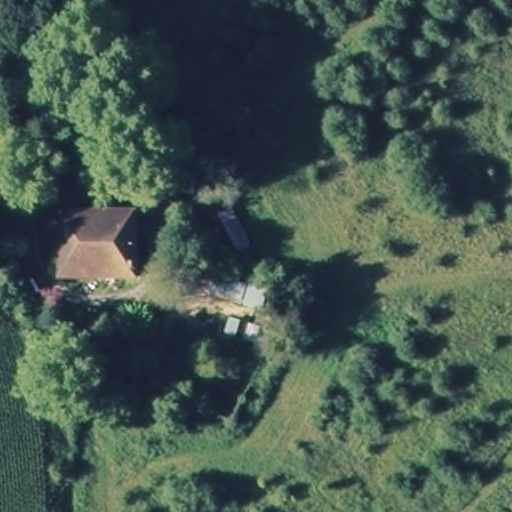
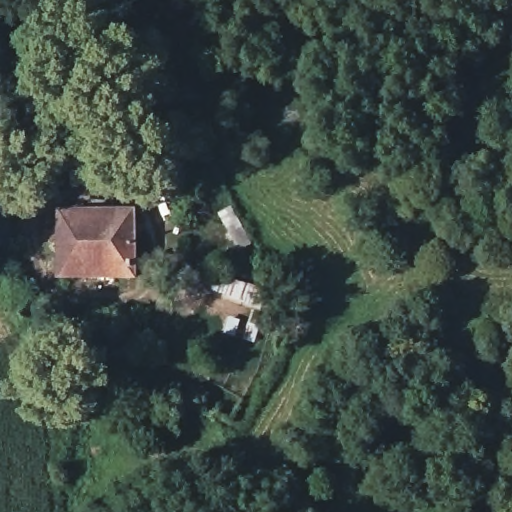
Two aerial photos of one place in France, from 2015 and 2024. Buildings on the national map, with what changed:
unchanged [(141,276),(67,279),(65,215),(137,214),(141,276)]
unchanged [(213,292),(221,272),(275,292),(268,312),(213,292)]

